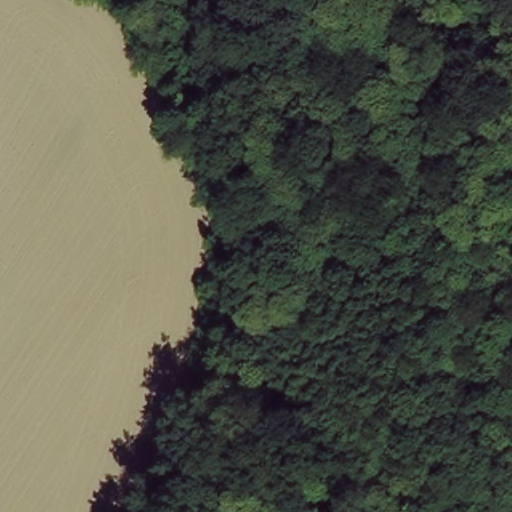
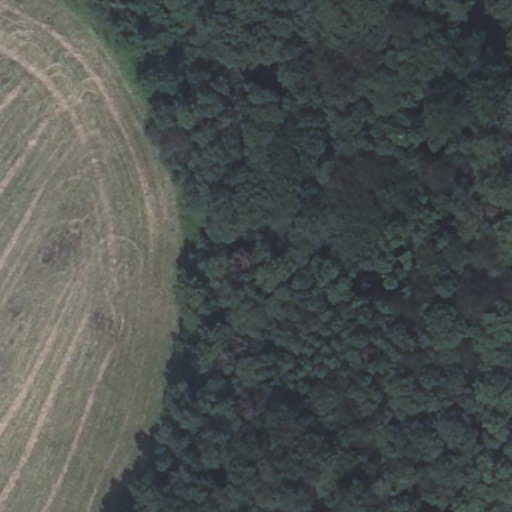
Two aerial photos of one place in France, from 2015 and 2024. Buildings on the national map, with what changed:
[]

